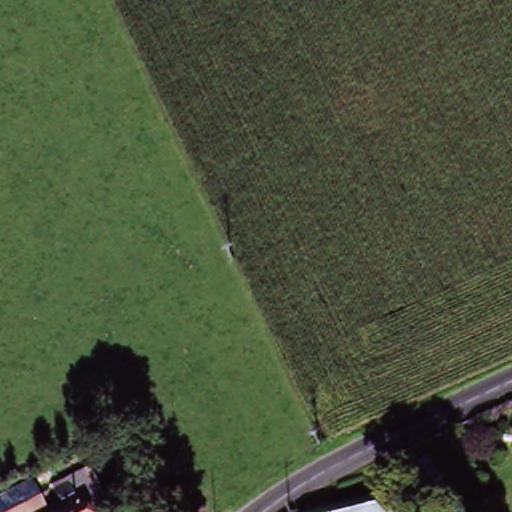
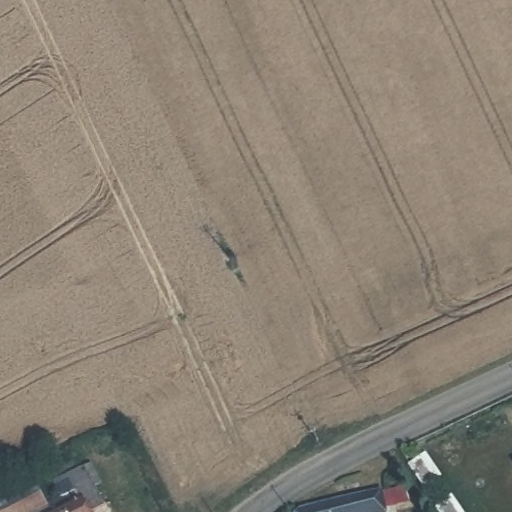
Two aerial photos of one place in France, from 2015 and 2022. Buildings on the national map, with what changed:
unchanged [(65,510),(60,501),(56,493),(65,488),(87,478),(105,512),(61,512),(65,510)]
unchanged [(48,501),(44,504),(48,512),(0,512),(0,498),(36,479),(48,501)]
unchanged [(374,489),(390,512),(358,512),(354,494),(374,489)]
unchanged [(358,512),(274,512),(354,494),(358,512)]

